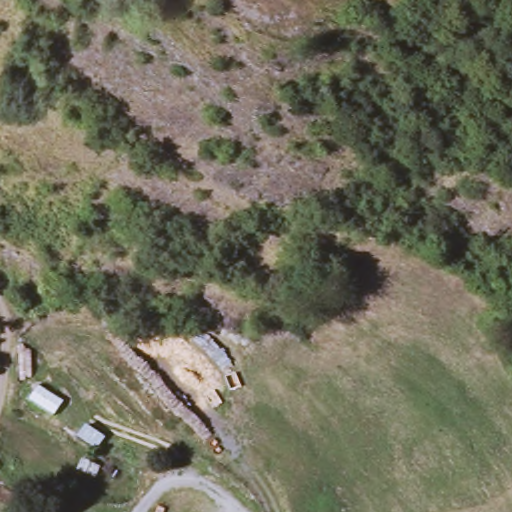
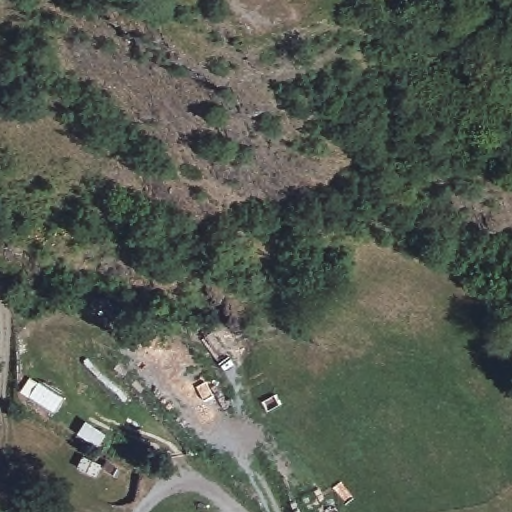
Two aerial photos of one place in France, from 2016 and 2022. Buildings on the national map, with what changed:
unchanged [(60,398),(45,419),(36,412),(21,401),(37,381),(60,398)]

